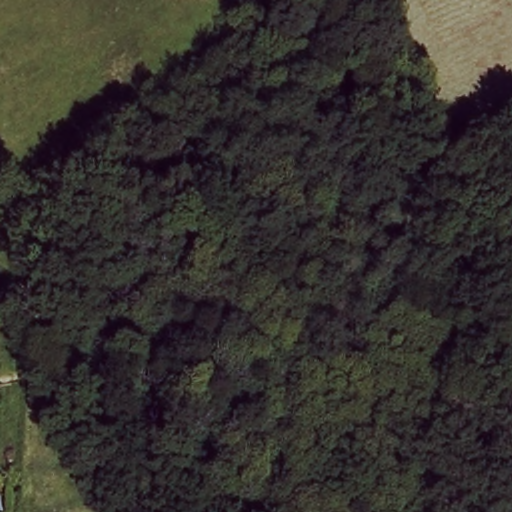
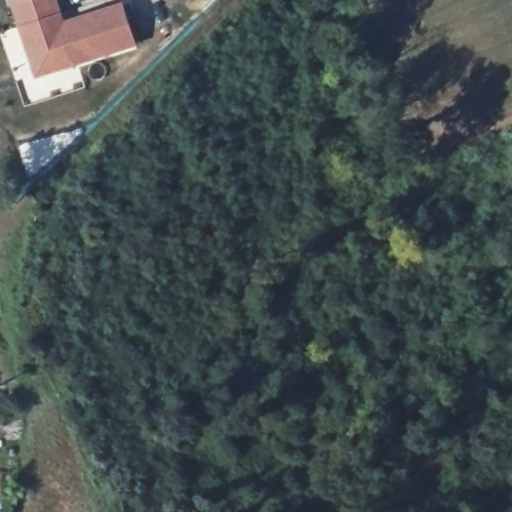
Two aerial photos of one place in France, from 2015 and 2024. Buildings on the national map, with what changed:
new [(58,0),(67,20),(124,3),(137,47),(36,79),(11,1),(13,0),(58,0)]
new [(3,511),(0,512),(0,499),(3,511)]

